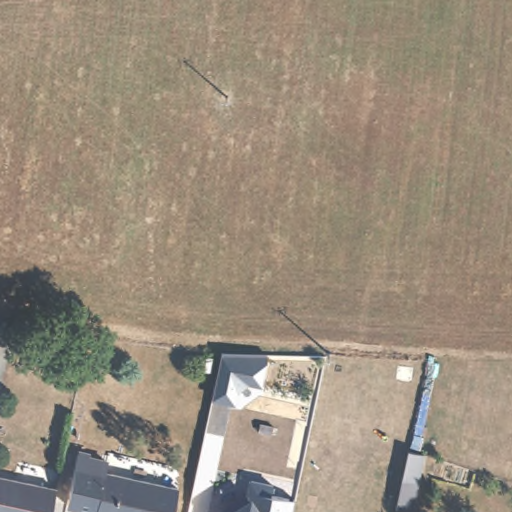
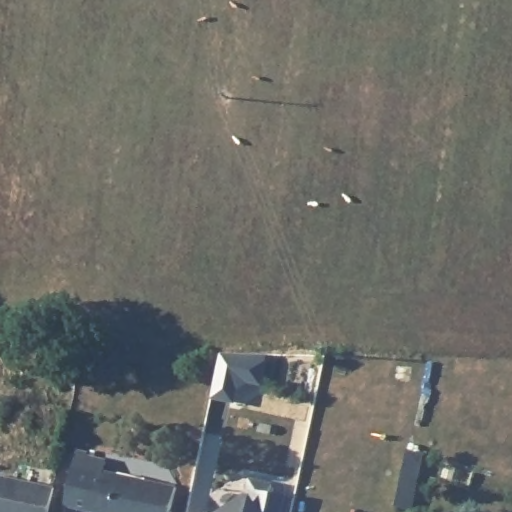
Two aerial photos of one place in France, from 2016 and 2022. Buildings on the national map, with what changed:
unchanged [(214,401),(223,357),(267,356),(262,387),(249,384),(239,390),(236,404),(214,401)]
unchanged [(426,454),(416,512),(409,512),(396,510),(409,450),(426,454)]
unchanged [(67,509),(73,473),(58,471),(62,452),(107,461),(104,474),(96,512),(83,512),(67,509)]
unchanged [(104,474),(156,485),(151,512),(96,512),(104,474)]
unchanged [(0,476),(54,484),(49,512),(0,512),(0,476)]
unchanged [(247,496),(250,481),(272,486),(270,496),(294,501),(292,512),(219,512),(247,496)]
unchanged [(178,489),(173,512),(151,512),(156,485),(178,489)]

